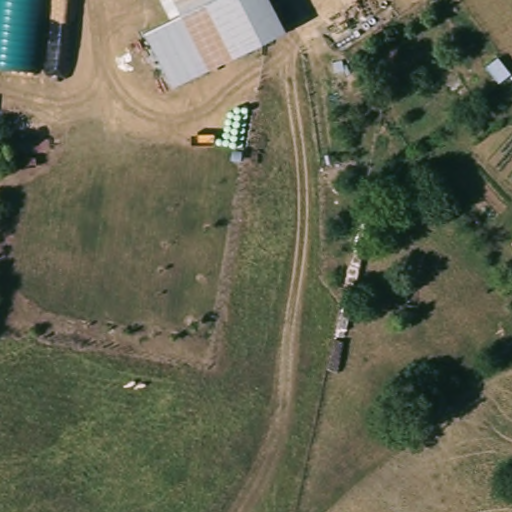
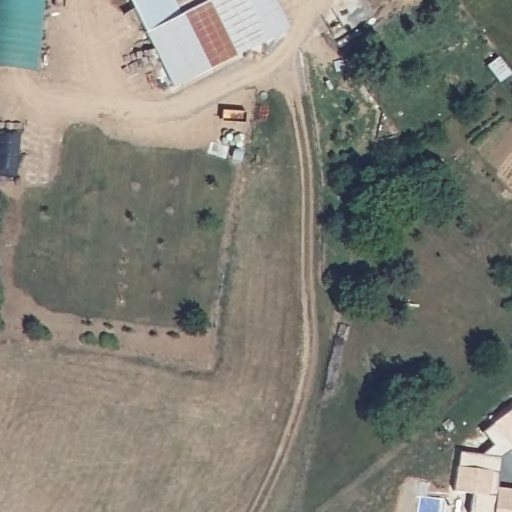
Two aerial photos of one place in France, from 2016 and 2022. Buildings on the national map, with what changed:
unchanged [(0,66),(0,0),(43,0),(37,70),(0,66)]
unchanged [(181,17),(174,0),(220,0),(181,17)]
unchanged [(285,37),(222,65),(206,72),(181,17),(220,0),(268,0),(285,37)]
unchanged [(181,17),(206,72),(170,88),(145,33),(181,17)]
new [(453,492),(457,452),(481,454),(492,445),(481,432),(512,408),(512,448),(500,457),(496,488),(512,490),(512,512),(470,512),(472,494),(453,492)]

